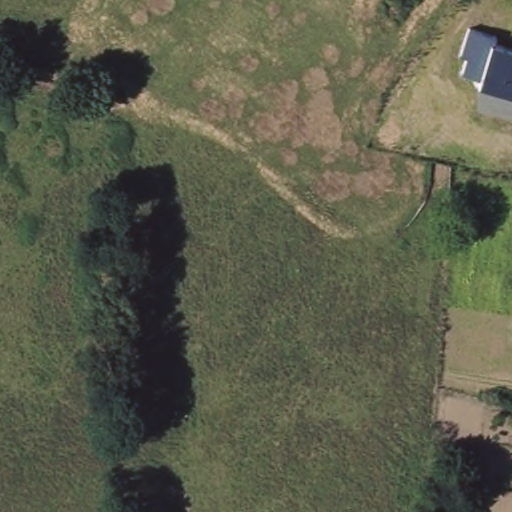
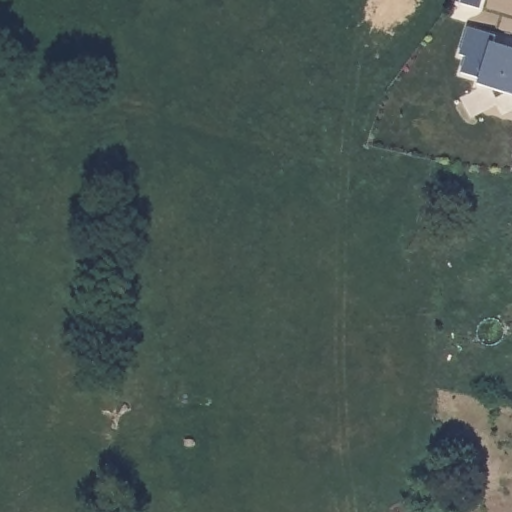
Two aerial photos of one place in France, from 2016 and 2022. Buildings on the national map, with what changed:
unchanged [(495,35),(493,42),(512,47),(512,95),(479,86),(480,77),(461,72),(465,55),(459,52),(468,26),(495,35)]

